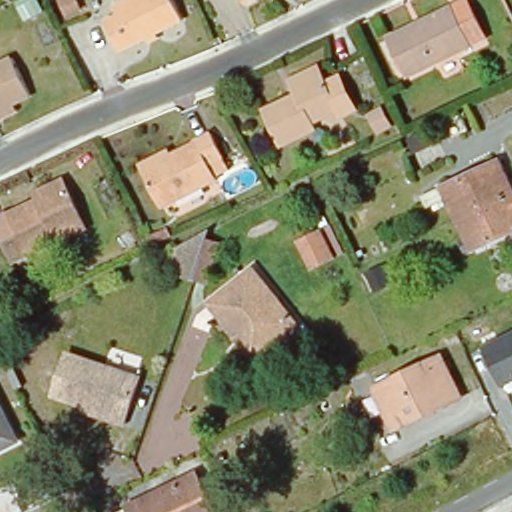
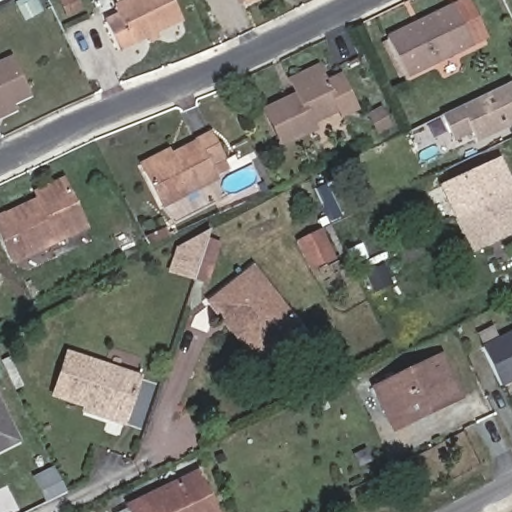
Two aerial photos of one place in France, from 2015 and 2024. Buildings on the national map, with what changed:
unchanged [(114,16),(111,8),(127,0),(171,0),(179,17),(114,45),(102,21),(114,16)]
unchanged [(248,0),(243,2),(242,0),(248,0)]
unchanged [(381,45),(462,7),(479,44),(397,82),(381,45)]
unchanged [(10,107),(13,114),(0,120),(0,66),(8,62),(27,98),(10,107)]
unchanged [(355,110),(336,119),(331,116),(306,129),(310,136),(277,152),(259,115),(281,105),(286,114),(297,109),(290,94),(286,86),(316,72),(321,80),(336,73),(355,110)]
new [(477,143),(473,134),(454,142),(442,116),(511,83),(512,85),(512,126),(477,143)]
unchanged [(363,120),(383,111),(390,126),(369,135),(363,120)]
unchanged [(222,155),(208,161),(216,178),(163,203),(147,165),(142,155),(169,141),(172,146),(209,128),(222,155)]
unchanged [(445,185),(502,156),(512,175),(512,188),(459,213),(445,185)]
unchanged [(6,245),(5,246),(0,236),(0,223),(34,207),(29,198),(60,185),(64,193),(85,233),(17,265),(6,245)]
unchanged [(512,188),(512,234),(478,251),(460,214),(459,213),(512,188)]
unchanged [(293,232),(321,218),(336,255),(311,268),(293,232)]
unchanged [(169,240),(193,248),(199,233),(212,238),(199,276),(186,272),(161,263),(169,240)]
unchanged [(215,318),(205,306),(246,273),(291,329),(262,353),(252,362),(215,318)]
unchanged [(501,385),(484,346),(512,332),(512,381),(501,385)]
unchanged [(81,402),(48,392),(62,350),(135,374),(120,421),(105,417),(79,408),(81,402)]
unchanged [(386,421),(372,392),(439,359),(459,399),(410,423),(392,433),(386,421)]
unchanged [(0,447),(0,418),(11,441),(0,447)]
unchanged [(115,509),(129,502),(200,467),(221,512),(116,512),(115,509)]
unchanged [(42,478),(60,469),(72,491),(54,499),(42,478)]

